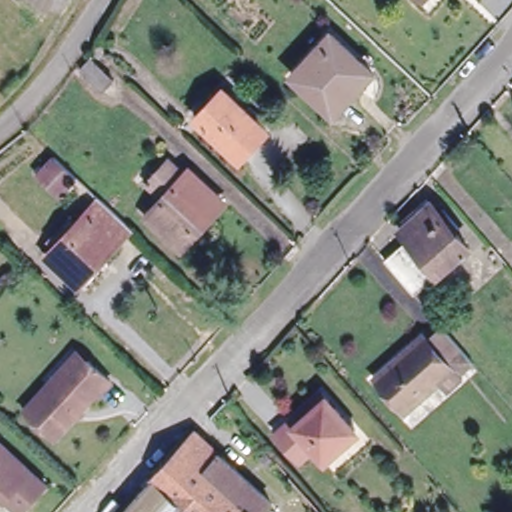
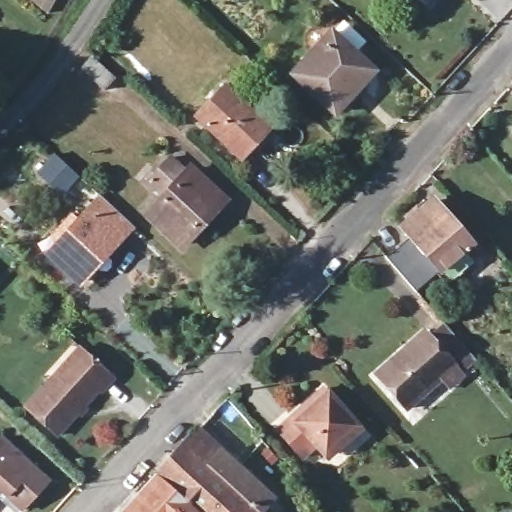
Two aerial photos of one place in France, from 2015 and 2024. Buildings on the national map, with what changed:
unchanged [(332,32),(373,71),(335,112),(293,73),(332,32)]
unchanged [(89,55),(111,75),(100,88),(78,68),(89,55)]
unchanged [(227,85),(271,128),(244,156),(199,113),(227,85)]
unchanged [(44,172),(59,155),(81,177),(66,193),(44,172)]
unchanged [(149,211),(165,194),(149,179),(172,155),(188,171),(190,167),(223,198),(183,242),(149,211)]
unchanged [(134,225),(79,279),(51,251),(105,199),(134,225)]
unchanged [(393,262),(408,249),(416,241),(407,230),(438,204),(476,247),(437,281),(422,294),(393,262)]
unchanged [(463,369),(457,363),(408,405),(378,372),(404,351),(407,353),(416,345),(413,342),(429,328),(434,334),(448,323),(450,326),(477,356),(463,369)]
unchanged [(103,390),(101,388),(58,434),(28,404),(71,357),(80,366),(91,356),(115,378),(103,390)]
unchanged [(364,429),(332,457),(323,447),(309,458),(284,430),(299,417),(314,405),(330,390),(364,429)]
unchanged [(200,424),(274,493),(256,512),(119,512),(200,424)]
unchanged [(49,477),(22,506),(0,485),(0,486),(0,438),(4,434),(49,477)]

